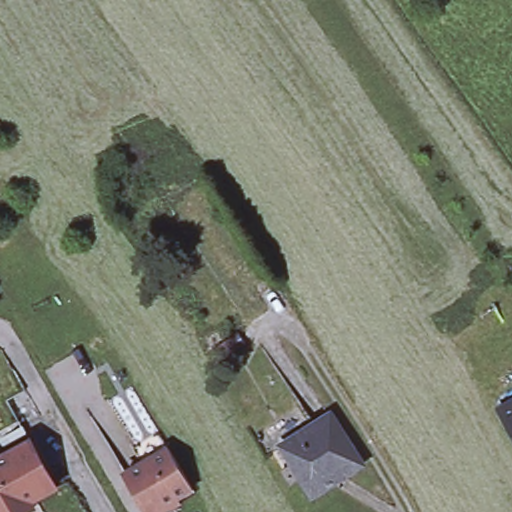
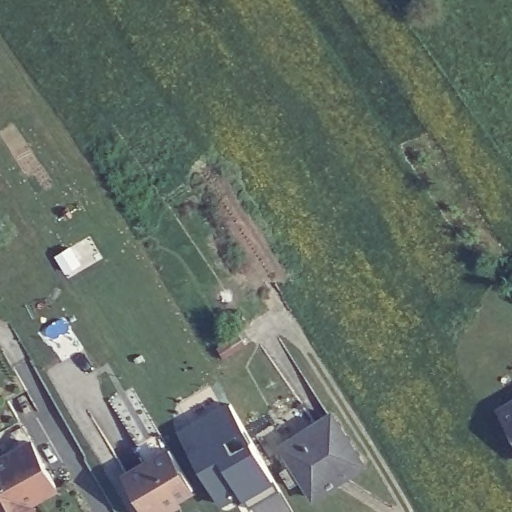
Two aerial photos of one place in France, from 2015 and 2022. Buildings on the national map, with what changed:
new [(230,401),(280,487),(250,504),(242,486),(220,499),(181,430),(230,401)]
unchanged [(512,402),(512,433),(498,410),(512,402)]
unchanged [(283,447),(332,415),(361,461),(311,492),(301,476),(290,483),(282,470),(293,463),(283,447)]
unchanged [(22,433),(56,494),(30,508),(33,512),(0,512),(0,445),(22,433)]
unchanged [(147,512),(126,478),(167,453),(191,493),(195,499),(171,512),(147,512)]

